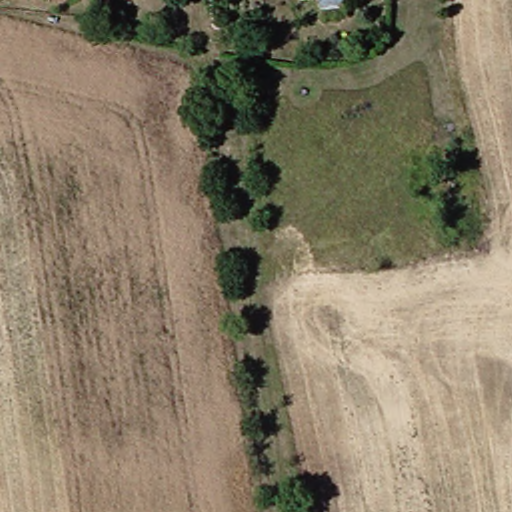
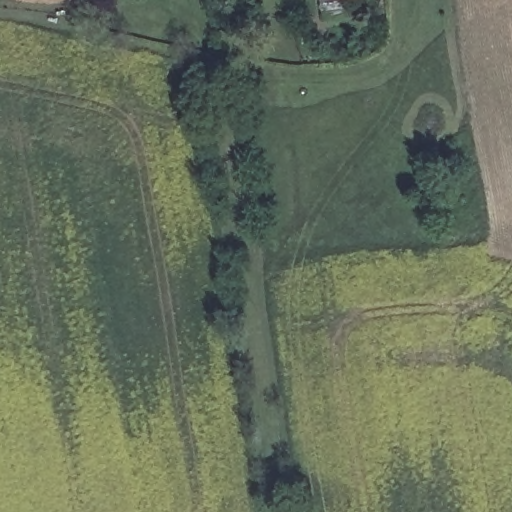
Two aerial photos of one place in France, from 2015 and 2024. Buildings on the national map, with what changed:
unchanged [(313,9),(312,0),(380,0),(380,7),(313,9)]

